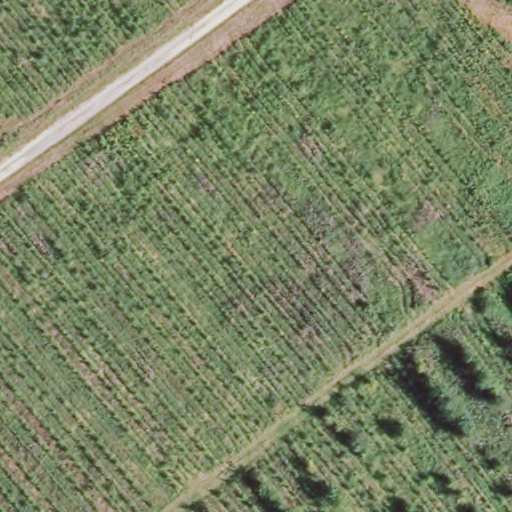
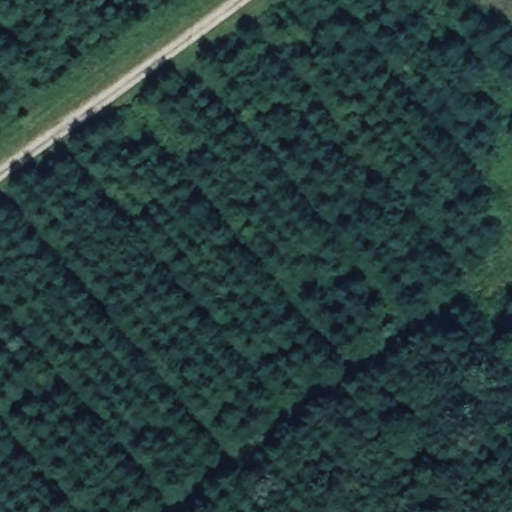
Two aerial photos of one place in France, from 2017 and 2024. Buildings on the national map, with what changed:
[]

